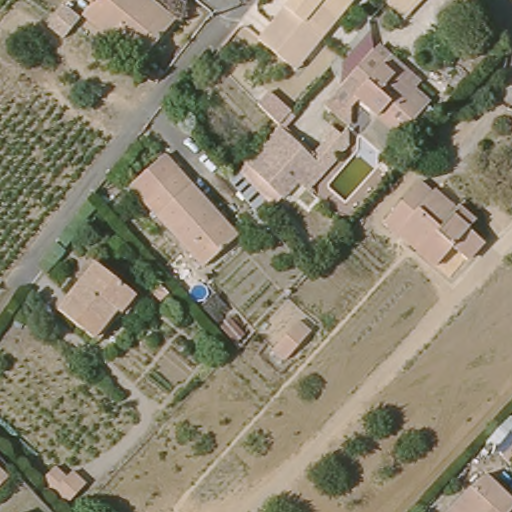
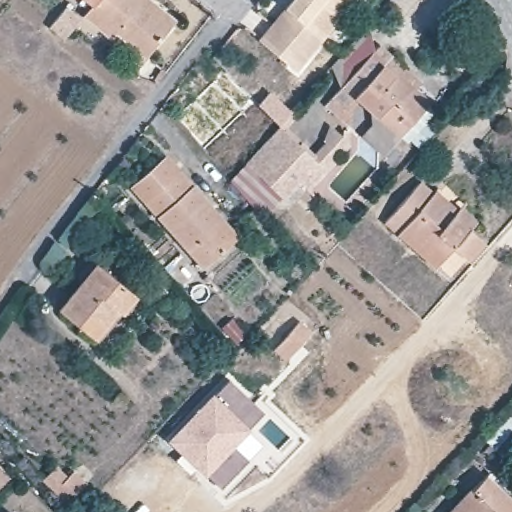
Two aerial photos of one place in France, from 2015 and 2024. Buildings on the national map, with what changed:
unchanged [(93,0),(158,0),(178,17),(149,51),(154,56),(143,70),(108,40),(113,34),(86,12),(95,1),(93,0)]
unchanged [(257,40),(270,24),(282,10),(290,0),(351,0),(319,38),(303,58),(293,70),(286,63),(257,40)]
unchanged [(413,138),(369,98),(374,93),(364,85),(389,58),(402,70),(427,93),(422,97),(438,112),(413,138)]
unchanged [(316,159),(282,195),(245,161),(279,125),(316,159)]
unchanged [(196,253),(134,186),(168,154),(228,220),(196,253)]
unchanged [(477,216),(471,223),(487,238),(470,256),(454,241),(436,259),(390,215),(424,178),(437,190),(440,187),(458,203),(460,200),(477,216)]
unchanged [(59,308),(94,259),(134,289),(118,311),(113,307),(93,333),(59,308)]
unchanged [(313,337),(294,358),(281,347),(300,326),(313,337)]
new [(231,377),(264,411),(232,443),(247,457),(219,485),(171,437),(231,377)]
unchanged [(87,475),(68,496),(44,473),(57,458),(69,467),(73,463),(87,475)]
unchanged [(3,493),(0,491),(0,462),(14,475),(3,493)]
unchanged [(486,476),(512,502),(512,510),(510,512),(451,512),(486,476)]

